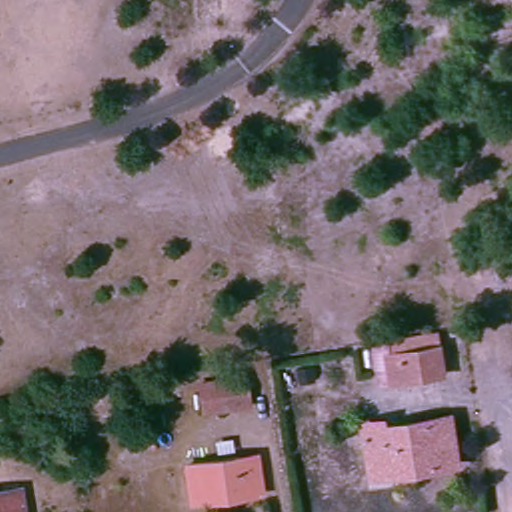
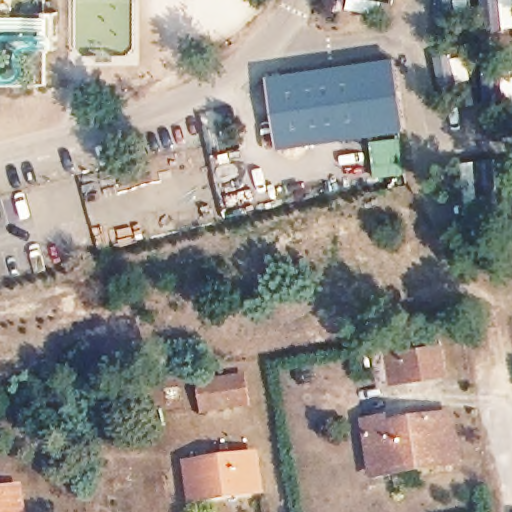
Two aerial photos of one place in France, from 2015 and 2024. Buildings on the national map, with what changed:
new [(392,59),(397,59),(406,131),(402,131),(282,146),(278,147),(269,75),(273,74),(392,59)]
unchanged [(507,267),(507,257),(512,257),(512,287),(509,287),(509,283),(494,285),(493,267),(507,267)]
unchanged [(372,390),(368,350),(439,335),(448,375),(372,390)]
unchanged [(234,351),(240,389),(197,396),(192,370),(218,366),(218,354),(234,351)]
unchanged [(373,480),(366,427),(384,425),(386,430),(449,424),(449,426),(456,470),(416,475),(393,478),(373,480)]
unchanged [(266,498),(199,509),(189,470),(259,460),(266,498)]
unchanged [(0,512),(0,495),(20,492),(23,512),(0,512)]

